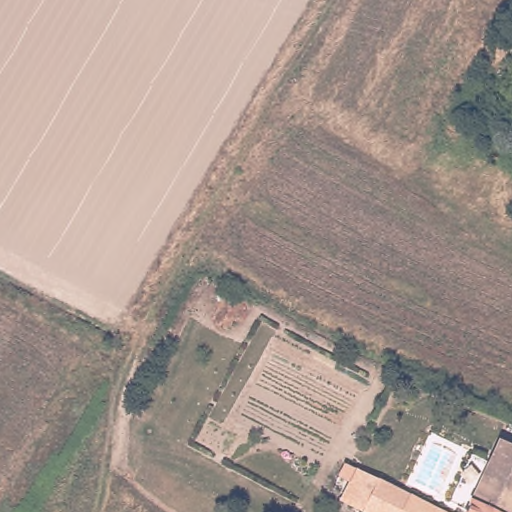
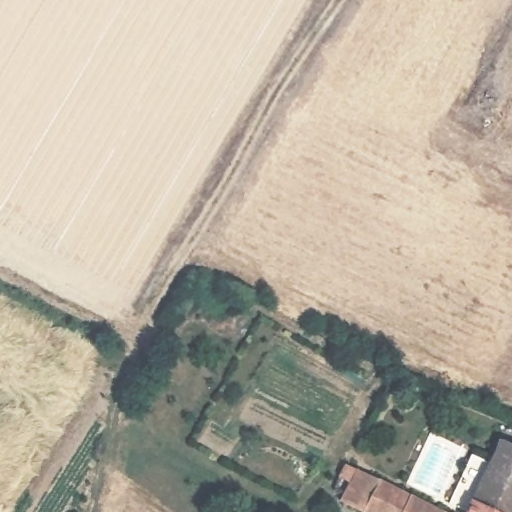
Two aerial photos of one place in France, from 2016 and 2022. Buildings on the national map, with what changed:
unchanged [(500,444),(512,450),(512,512),(466,512),(500,444)]
unchanged [(442,506),(440,512),(372,512),(344,498),(349,477),(341,473),(348,461),(442,506)]

